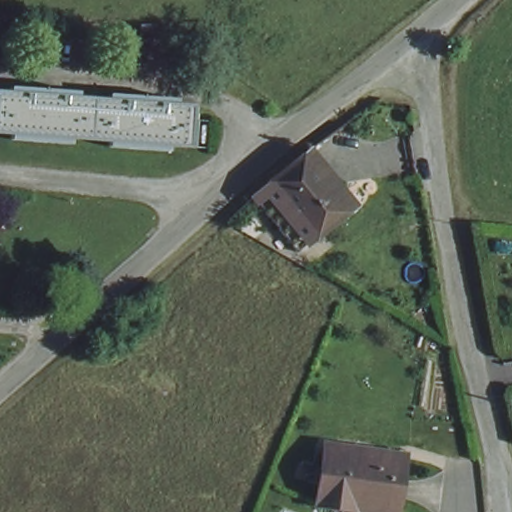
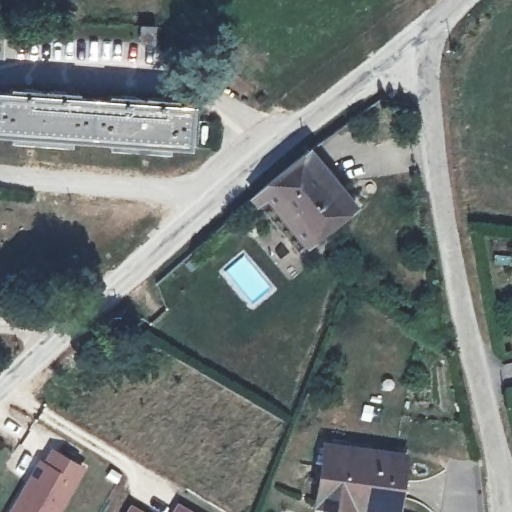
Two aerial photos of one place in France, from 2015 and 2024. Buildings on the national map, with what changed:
unchanged [(157,46),(139,45),(139,30),(157,30),(157,46)]
unchanged [(20,88),(62,90),(61,97),(114,102),(114,95),(161,100),(161,105),(192,108),(188,148),(0,134),(0,91),(20,93),(20,88)]
unchanged [(301,156),(311,147),(356,206),(347,213),(316,236),(272,180),(301,156)]
unchanged [(316,505),(324,445),(405,457),(398,502),(397,512),(369,512),(345,509),(316,505)]
new [(51,447),(87,467),(60,512),(7,512),(37,459),(44,462),(51,447)]
new [(148,512),(124,512),(130,502),(148,512)]
new [(194,512),(171,512),(178,502),(194,512)]

